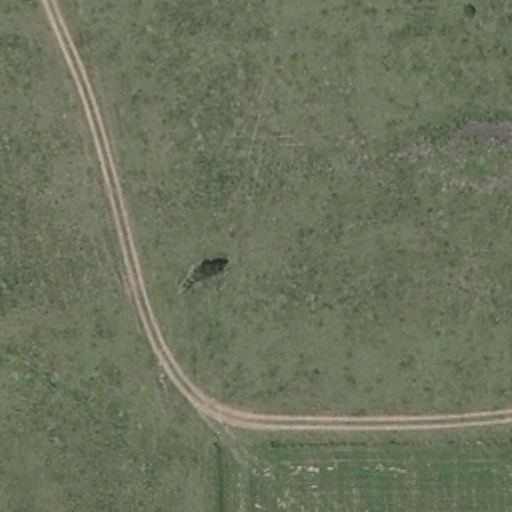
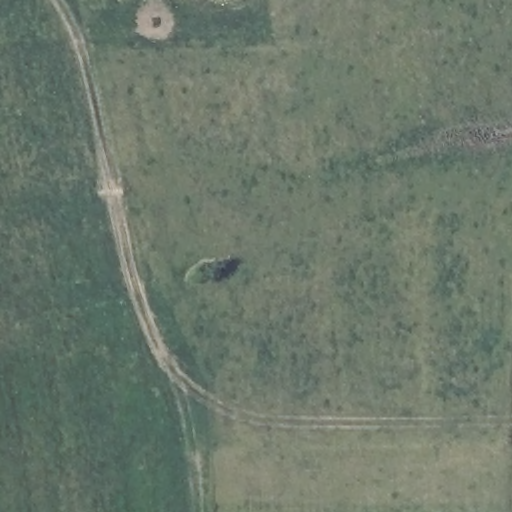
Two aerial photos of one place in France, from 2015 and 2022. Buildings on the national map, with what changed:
[]

